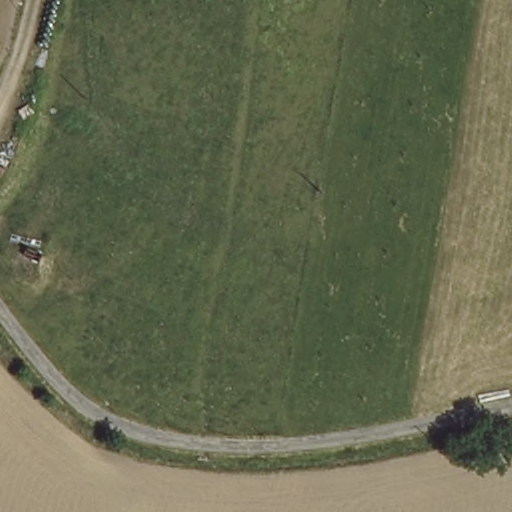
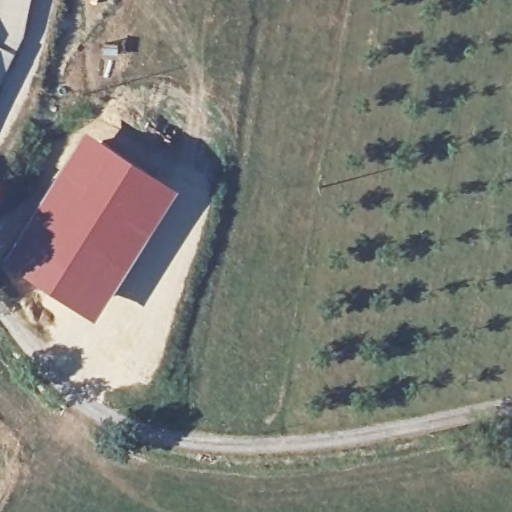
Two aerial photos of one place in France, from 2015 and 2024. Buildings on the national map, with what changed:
new [(84,129),(176,186),(92,317),(3,261),(84,129)]

